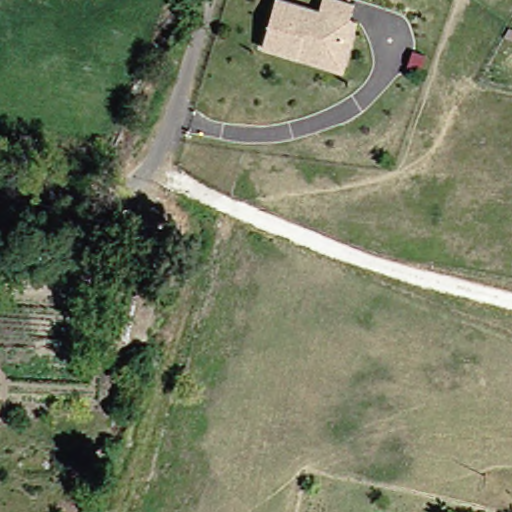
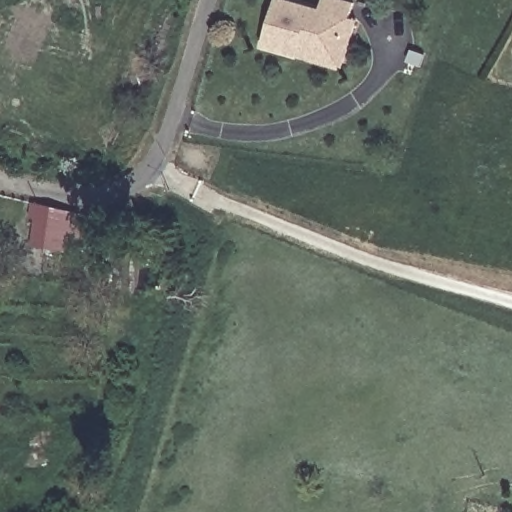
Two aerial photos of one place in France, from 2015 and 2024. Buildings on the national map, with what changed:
unchanged [(290,56),(256,45),(269,0),(282,0),(313,10),(317,0),(334,0),(348,5),(343,19),(351,21),(336,70),(290,56)]
new [(36,217),(30,216),(31,206),(80,212),(79,222),(89,222),(86,252),(32,247),(36,217)]

